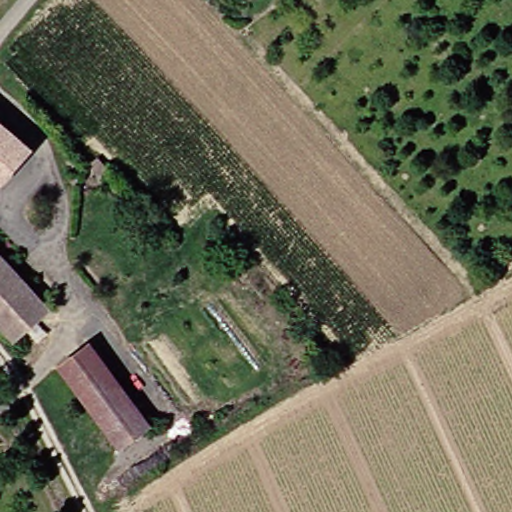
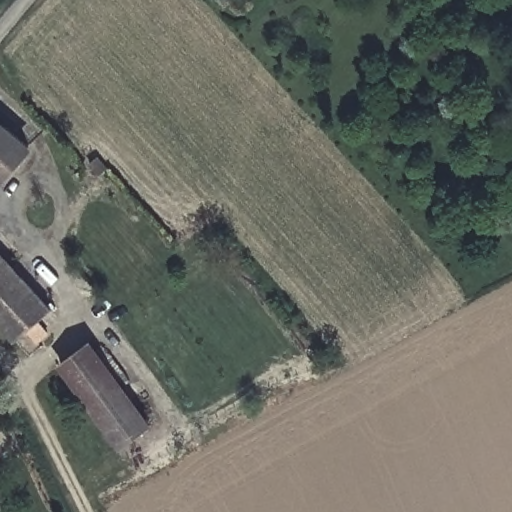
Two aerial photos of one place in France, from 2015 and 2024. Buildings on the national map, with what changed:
unchanged [(0,123),(24,144),(0,171),(0,123)]
unchanged [(43,331),(31,342),(19,328),(5,341),(0,334),(0,252),(46,306),(35,317),(43,331)]
unchanged [(140,427),(111,448),(54,365),(81,346),(140,427)]

